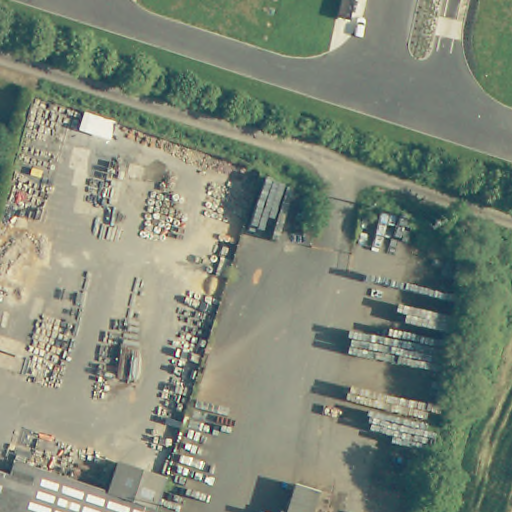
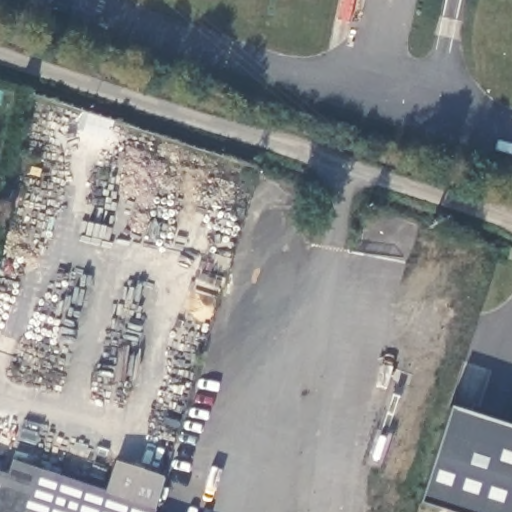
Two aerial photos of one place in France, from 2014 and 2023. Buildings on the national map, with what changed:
new [(512,428),(512,512),(444,512),(418,504),(450,409),(512,428)]
unchanged [(0,512),(0,481),(6,483),(13,464),(110,495),(120,464),(167,479),(157,510),(157,512),(0,512)]

